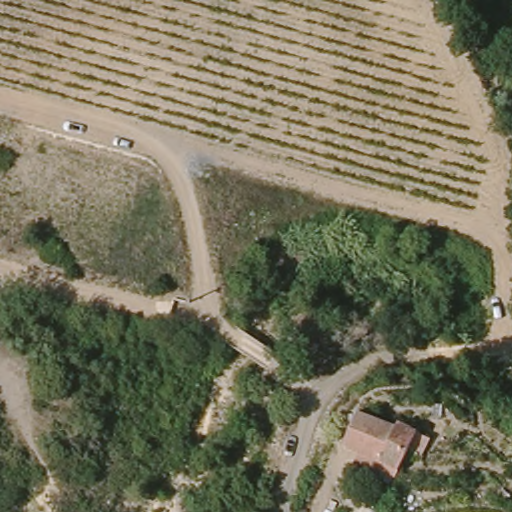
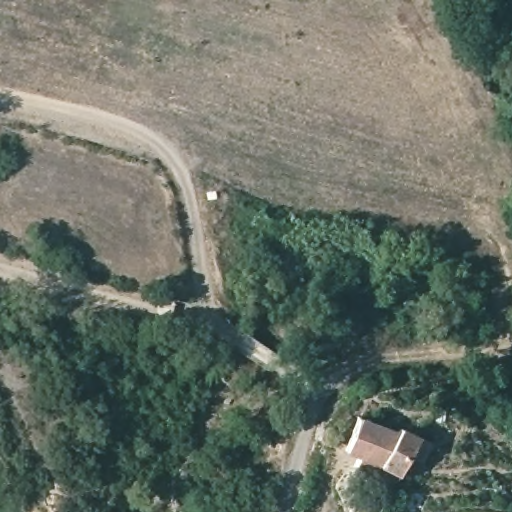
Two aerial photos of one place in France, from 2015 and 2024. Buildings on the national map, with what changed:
unchanged [(399,475),(341,448),(356,412),(420,431),(414,442),(399,475)]

